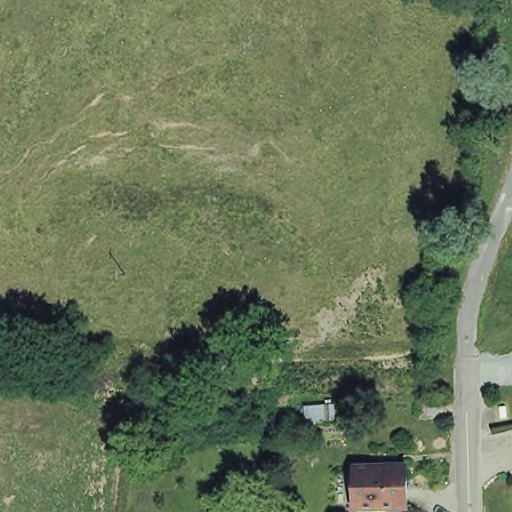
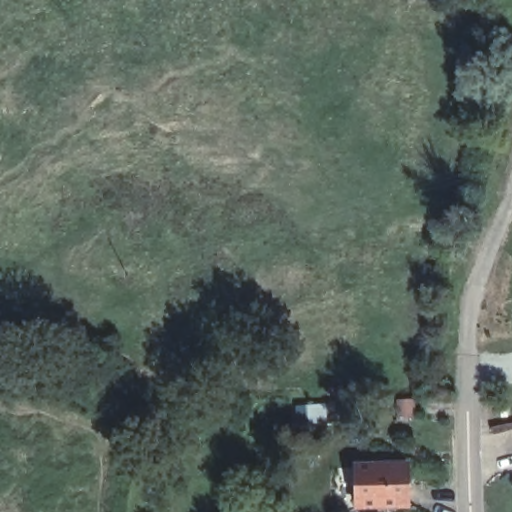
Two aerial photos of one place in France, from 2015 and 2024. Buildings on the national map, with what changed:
unchanged [(402,461),(402,504),(350,505),(350,462),(402,461)]

